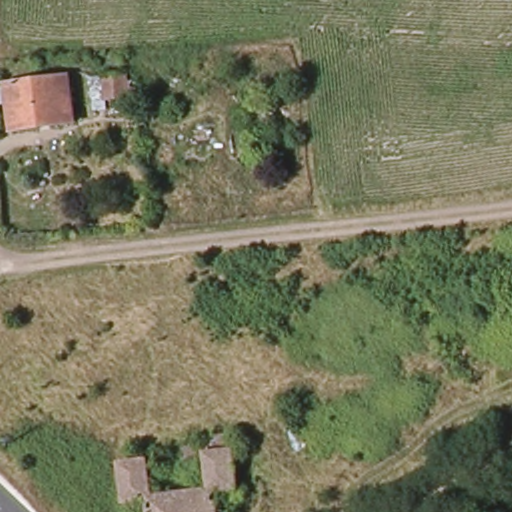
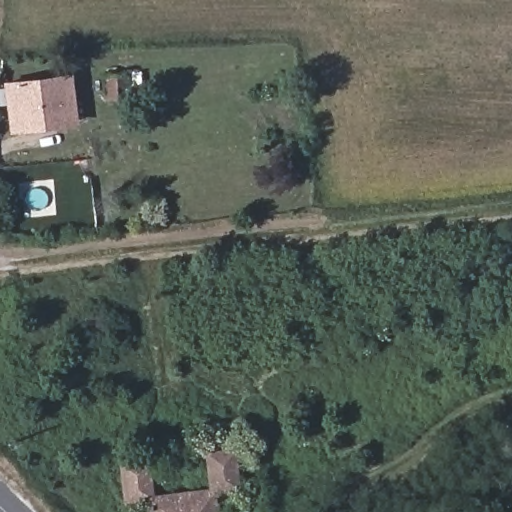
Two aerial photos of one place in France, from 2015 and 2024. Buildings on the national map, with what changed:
unchanged [(130,84),(139,84),(140,94),(107,96),(105,72),(127,70),(130,84)]
unchanged [(74,119),(14,126),(12,100),(2,100),(0,91),(0,85),(6,85),(7,78),(69,74),(74,119)]
unchanged [(152,495),(209,487),(206,456),(183,458),(182,454),(182,445),(203,444),(204,431),(232,431),(234,447),(237,484),(214,489),(218,512),(154,512),(153,498),(152,495)]
unchanged [(173,460),(160,459),(159,450),(173,449),(173,454),(173,460)]
unchanged [(149,498),(125,499),(121,461),(150,458),(152,495),(153,498),(149,498)]

